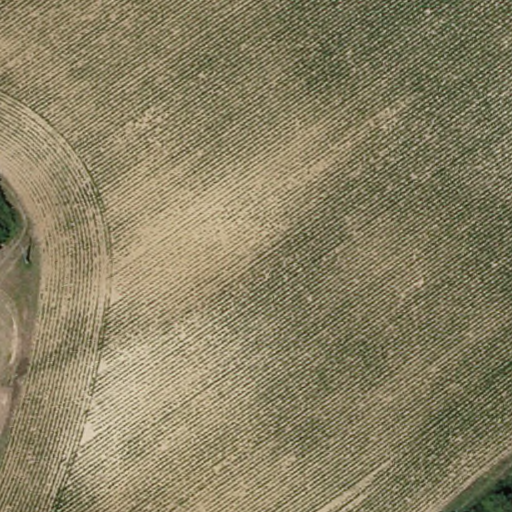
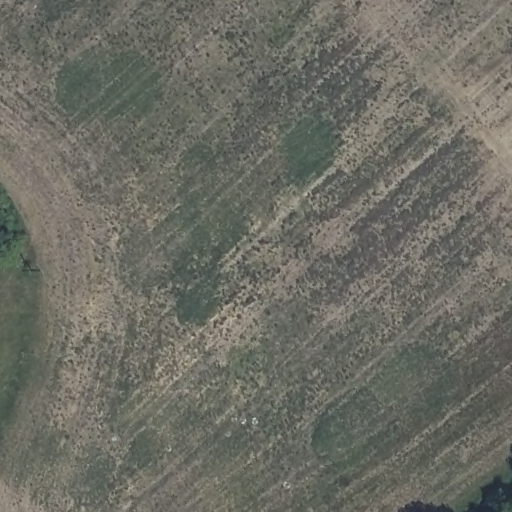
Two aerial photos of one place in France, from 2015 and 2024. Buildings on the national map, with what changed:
[]

